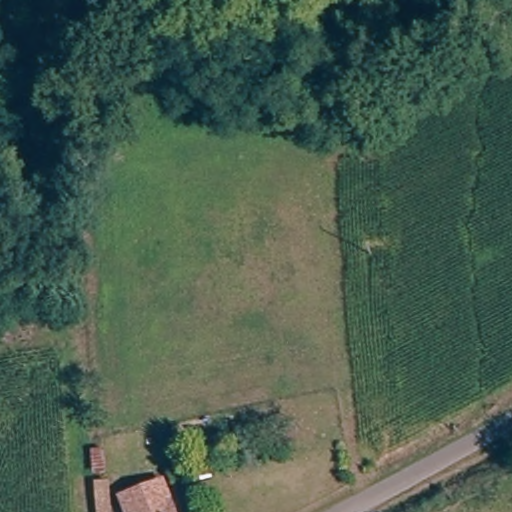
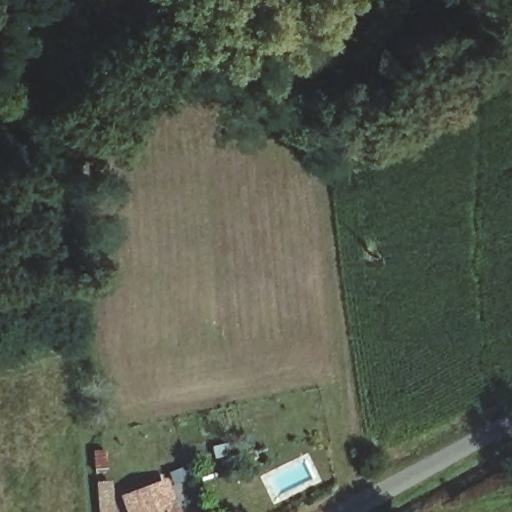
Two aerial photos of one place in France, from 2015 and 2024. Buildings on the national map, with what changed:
unchanged [(112,481),(115,512),(99,512),(97,481),(112,481)]
unchanged [(120,502),(158,485),(169,512),(123,512),(120,502)]

